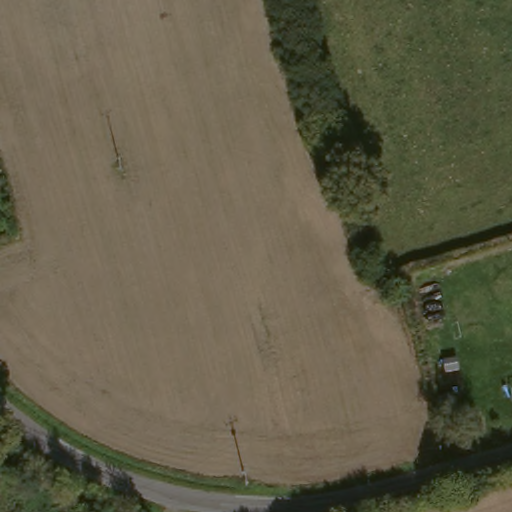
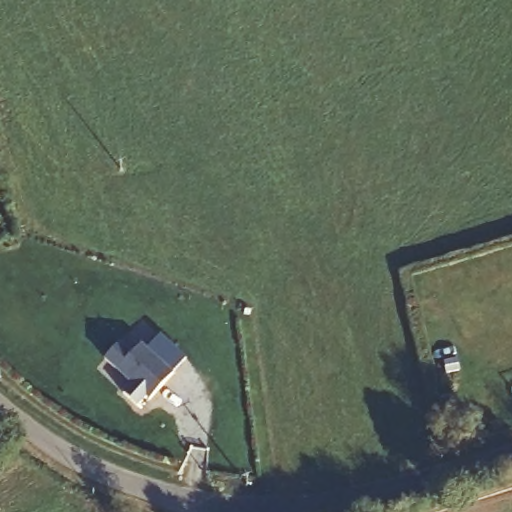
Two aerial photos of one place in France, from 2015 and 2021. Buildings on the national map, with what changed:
new [(186,358),(173,373),(149,399),(145,395),(137,406),(122,391),(125,388),(126,390),(133,382),(104,358),(120,342),(132,353),(142,344),(147,350),(159,334),(186,358)]
unchanged [(460,387),(465,406),(450,409),(445,390),(460,387)]

